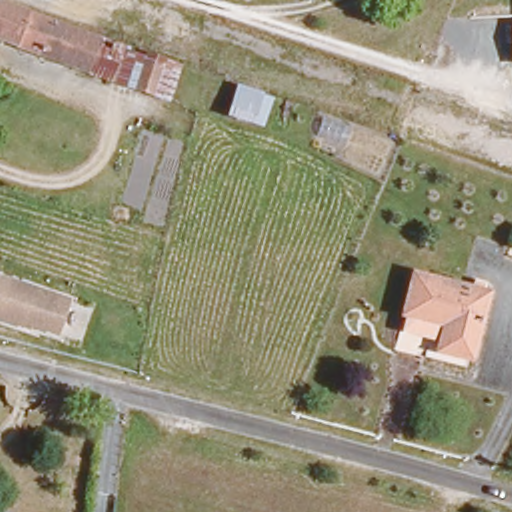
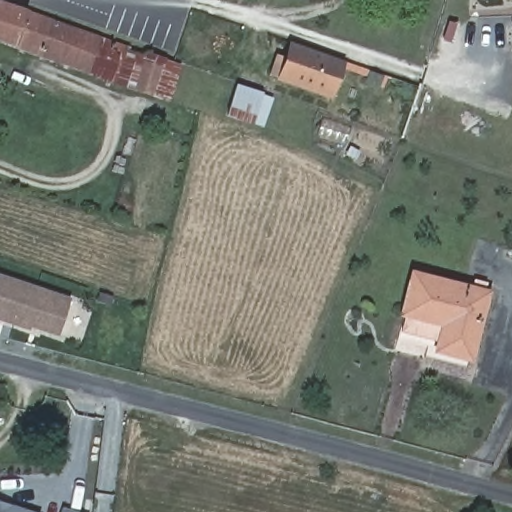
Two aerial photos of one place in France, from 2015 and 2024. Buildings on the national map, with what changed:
unchanged [(101,37),(181,62),(169,102),(86,72),(14,46),(0,41),(0,1),(26,10),(101,37)]
unchanged [(512,22),(512,66),(509,22),(512,22)]
new [(277,80),(269,76),(276,53),(286,56),(290,42),(345,62),(331,100),(277,80)]
unchanged [(234,82),(273,95),(262,129),(224,117),(234,82)]
unchanged [(439,337),(443,316),(401,306),(411,265),(485,282),(471,343),(439,337)]
unchanged [(55,338),(0,320),(0,274),(71,297),(55,338)]
new [(0,502),(37,512),(0,512),(0,502)]

